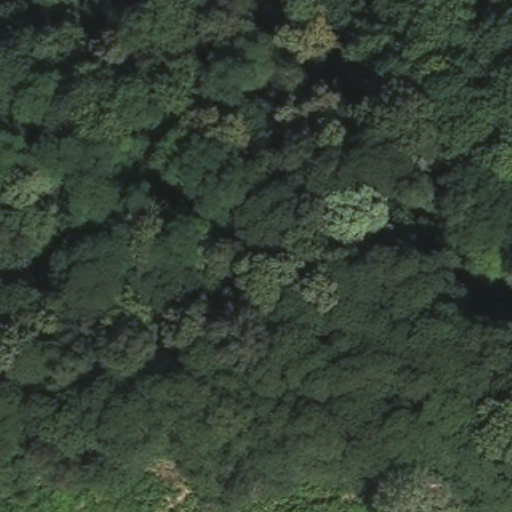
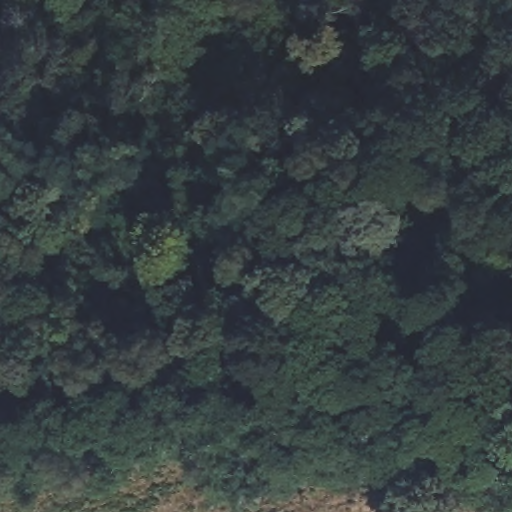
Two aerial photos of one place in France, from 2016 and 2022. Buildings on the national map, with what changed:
[]

